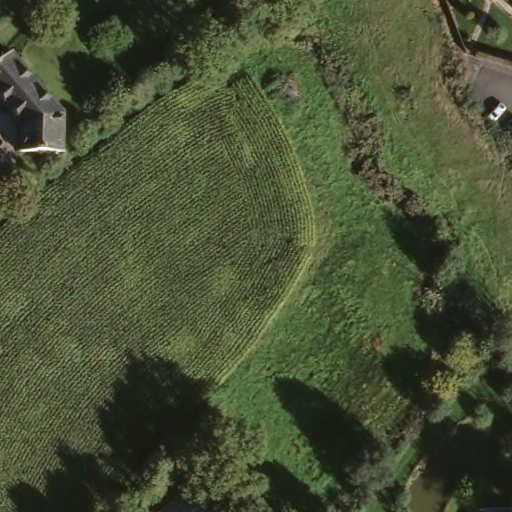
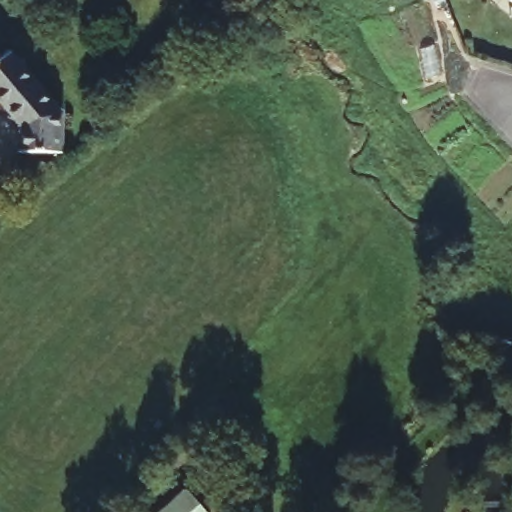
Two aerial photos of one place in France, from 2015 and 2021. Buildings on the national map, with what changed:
unchanged [(512,0),(512,2),(510,0),(512,0)]
unchanged [(63,106),(61,148),(21,146),(21,118),(0,93),(0,54),(11,46),(63,106)]
new [(188,490),(205,512),(164,512),(188,490)]

